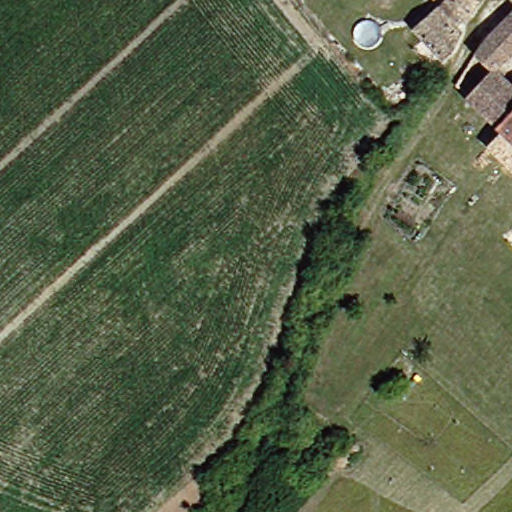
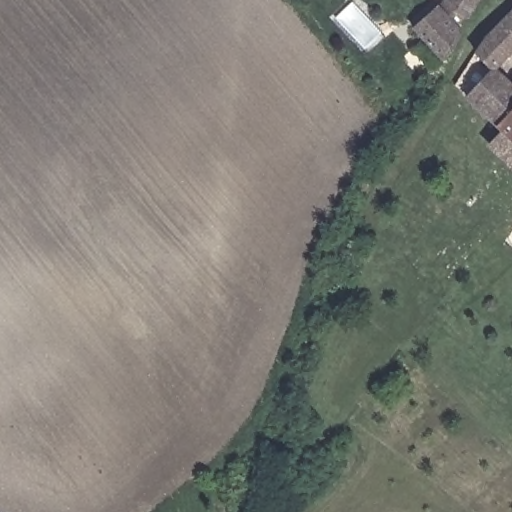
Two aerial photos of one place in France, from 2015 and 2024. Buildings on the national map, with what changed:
unchanged [(418,27),(443,6),(446,8),(451,0),(480,0),(471,16),(467,13),(461,24),(464,29),(466,33),(458,47),(444,61),(418,27)]
unchanged [(509,129),(477,96),(499,73),(483,58),(489,45),(512,19),(512,63),(505,71),(512,78),(512,157),(497,141),(509,129)]

